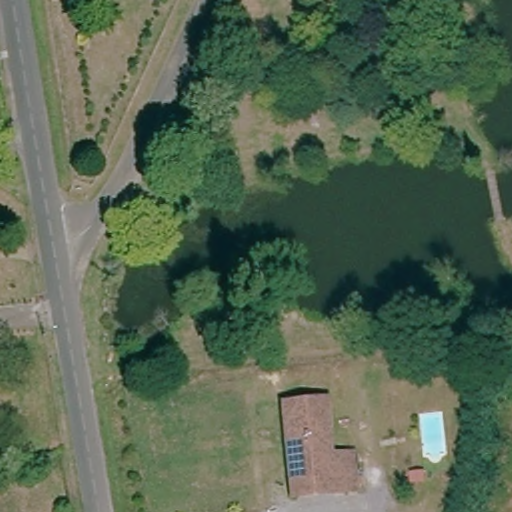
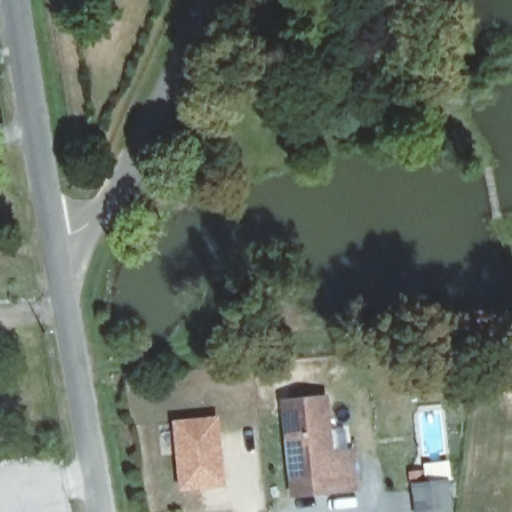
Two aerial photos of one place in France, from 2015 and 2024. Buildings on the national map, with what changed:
unchanged [(293,482),(287,404),(330,402),(333,457),(352,456),(355,494),(335,495),(295,499),(293,482)]
new [(219,417),(227,488),(180,493),(174,421),(219,417)]
new [(423,469),(422,463),(448,459),(453,512),(414,512),(408,470),(423,469)]

